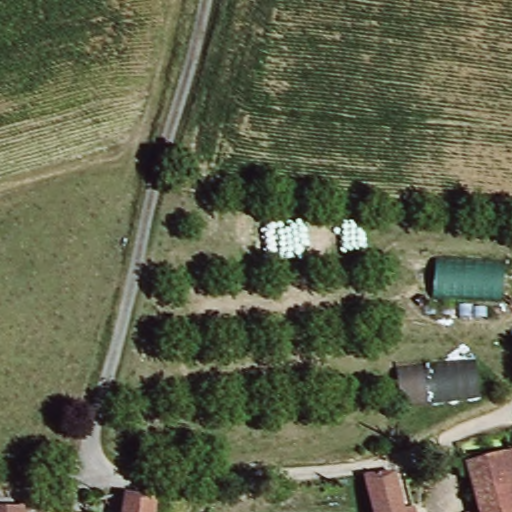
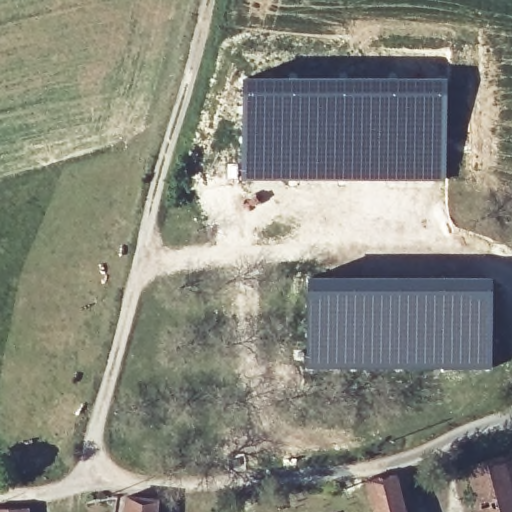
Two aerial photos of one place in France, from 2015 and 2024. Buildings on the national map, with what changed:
new [(241,75),(447,77),(446,181),(274,181),(237,180),(241,75)]
demolished [(436,265),(512,265),(512,300),(435,302),(436,265)]
new [(490,367),(306,366),(305,276),(490,277),(490,367)]
demolished [(400,407),(395,373),(477,363),(481,400),(400,407)]
unchanged [(512,459),(512,474),(509,460),(512,459)]
unchanged [(475,467),(509,460),(512,474),(512,512),(484,512),(475,467)]
unchanged [(364,483),(397,476),(410,512),(375,512),(364,483)]
unchanged [(109,492),(110,507),(95,508),(94,493),(109,492)]
unchanged [(28,512),(0,512),(0,500),(28,498),(28,512)]
unchanged [(162,503),(161,512),(132,512),(134,499),(162,503)]

